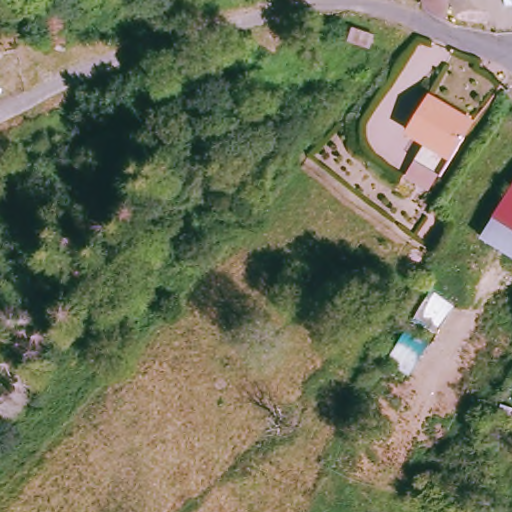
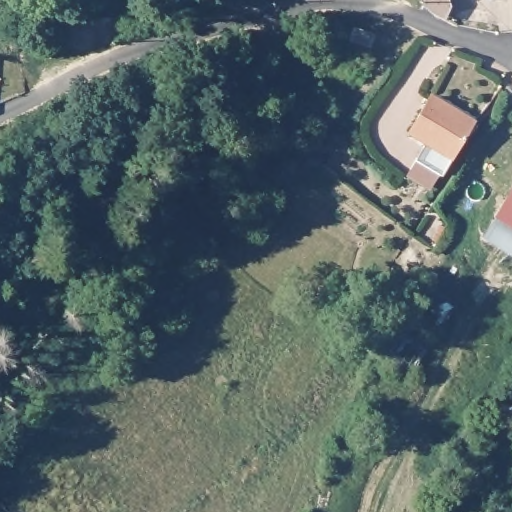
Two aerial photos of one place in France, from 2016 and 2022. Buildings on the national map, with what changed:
unchanged [(430,0),(449,0),(454,13),(434,11),(430,0)]
unchanged [(353,25),(377,34),(372,49),(348,40),(353,25)]
unchanged [(414,165),(427,146),(410,134),(434,97),(472,128),(439,181),(414,165)]
unchanged [(512,197),(512,233),(496,221),(512,197)]

